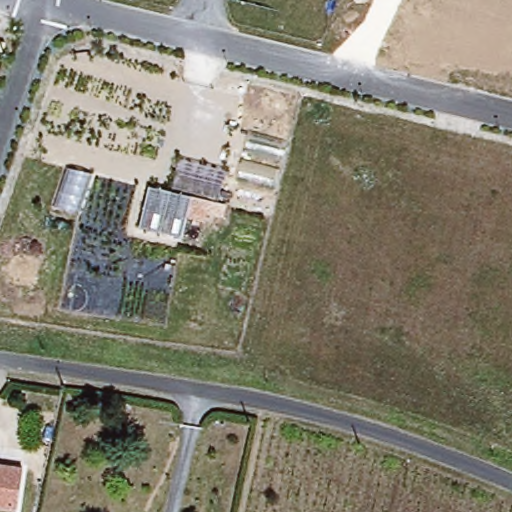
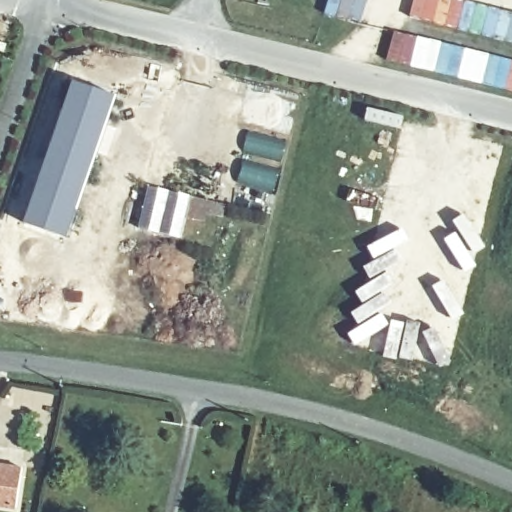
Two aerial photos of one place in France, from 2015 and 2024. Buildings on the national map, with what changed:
unchanged [(1,47),(0,47),(0,37),(5,38),(1,47)]
new [(72,80),(116,95),(67,237),(24,221),(72,80)]
unchanged [(227,204),(224,218),(207,215),(206,223),(186,218),(181,240),(135,230),(145,185),(227,204)]
unchanged [(0,464),(19,467),(12,506),(0,504),(0,464)]

